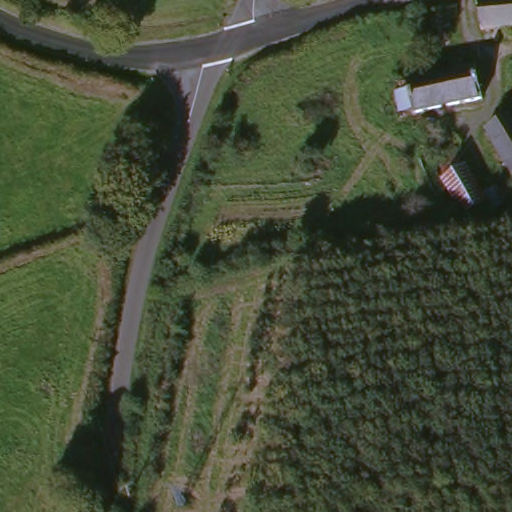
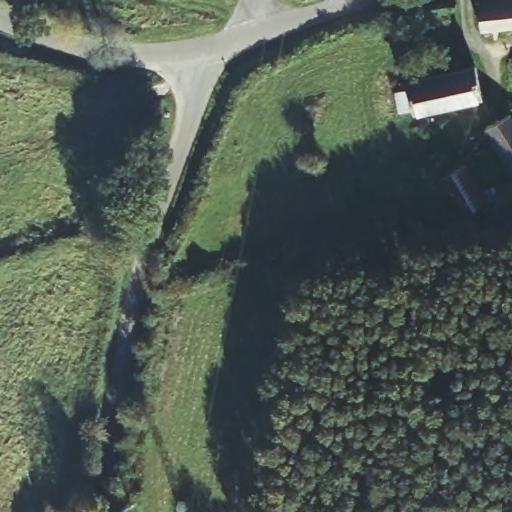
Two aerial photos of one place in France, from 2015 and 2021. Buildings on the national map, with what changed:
unchanged [(323,0),(353,0),(324,6),(323,0)]
unchanged [(512,30),(485,36),(479,7),(512,1),(512,30)]
unchanged [(479,100),(411,112),(406,81),(473,68),(479,100)]
unchanged [(512,178),(511,178),(484,126),(510,113),(512,117),(512,178)]
unchanged [(484,192),(455,213),(431,178),(463,158),(484,192)]

